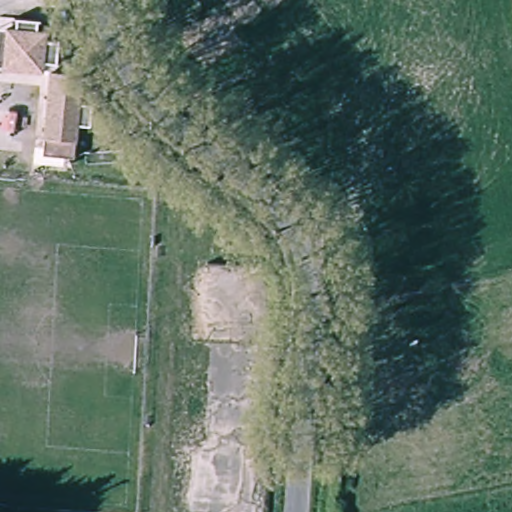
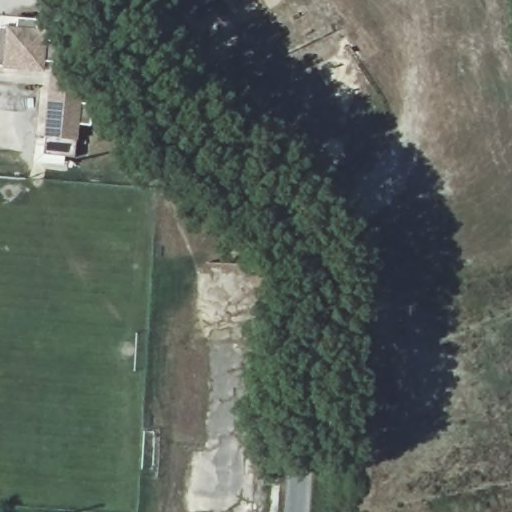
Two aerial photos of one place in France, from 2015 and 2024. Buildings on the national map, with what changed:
unchanged [(15,28),(15,19),(35,20),(35,27),(45,28),(45,40),(56,40),(55,60),(42,60),(42,72),(0,67),(0,28),(15,28)]
unchanged [(45,153),(45,132),(47,68),(79,70),(75,132),(75,155),(45,153)]

